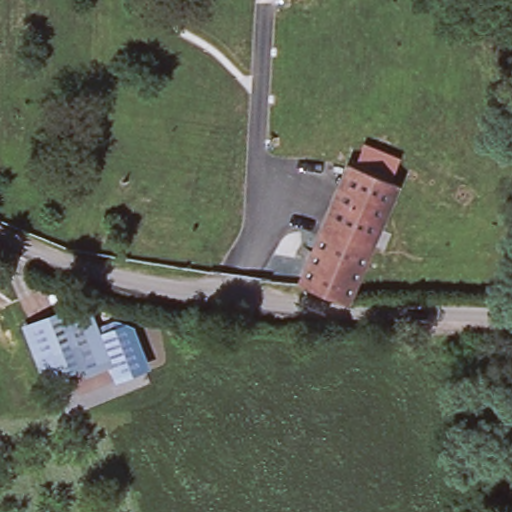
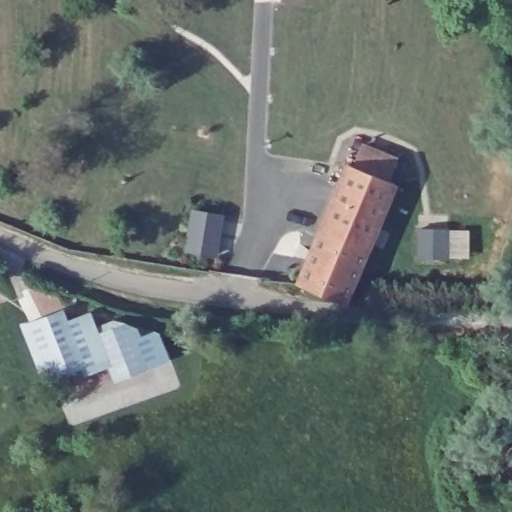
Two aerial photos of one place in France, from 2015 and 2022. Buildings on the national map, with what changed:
unchanged [(400,172),(350,293),(304,274),(353,153),(400,172)]
new [(217,257),(185,251),(192,208),(225,214),(217,257)]
new [(469,229),(469,257),(417,258),(418,228),(469,229)]
unchanged [(83,299),(96,332),(124,321),(143,370),(106,384),(97,358),(37,379),(16,323),(83,299)]

